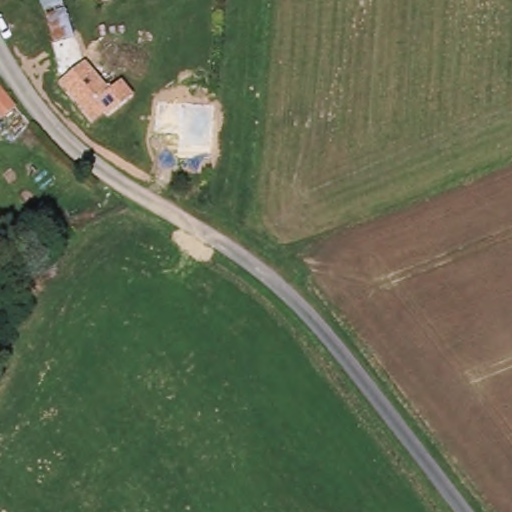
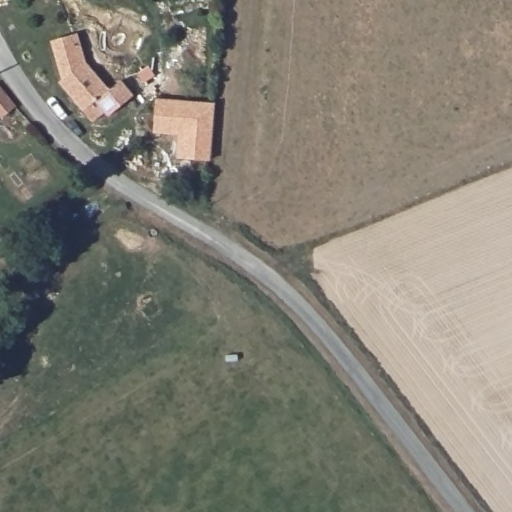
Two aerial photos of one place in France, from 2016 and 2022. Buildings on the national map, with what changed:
unchanged [(80,37),(61,43),(47,0),(68,0),(80,37)]
unchanged [(90,62),(115,91),(126,81),(139,95),(115,116),(111,112),(99,122),(66,85),(90,62)]
unchanged [(4,116),(0,112),(0,93),(14,107),(4,116)]
new [(154,101),(212,105),(207,160),(175,157),(176,134),(151,132),(154,101)]

